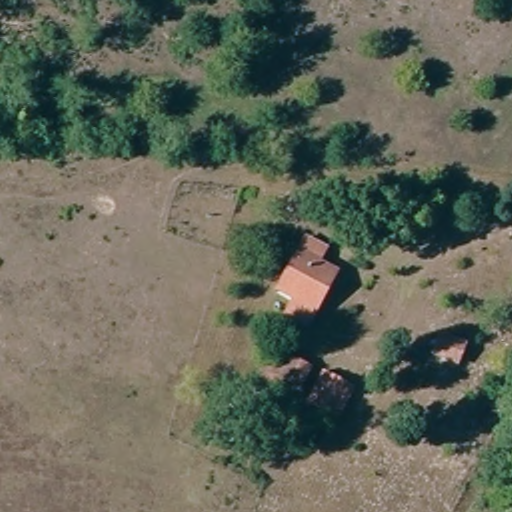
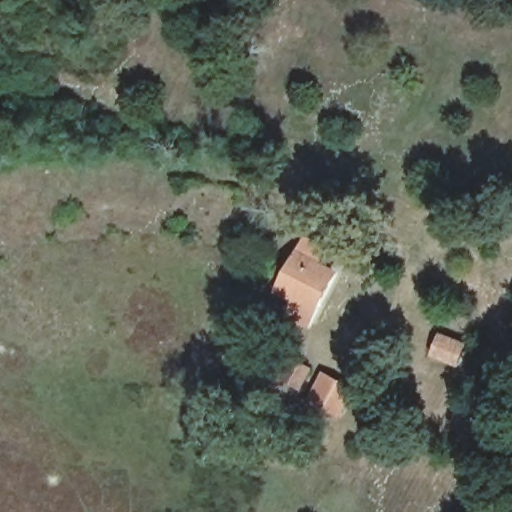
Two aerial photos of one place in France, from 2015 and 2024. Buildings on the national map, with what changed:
unchanged [(307,257),(335,271),(311,322),(293,314),(298,302),(287,297),(307,257)]
unchanged [(256,385),(262,361),(307,375),(301,398),(256,385)]
unchanged [(354,393),(338,431),(308,418),(324,382),(354,393)]

